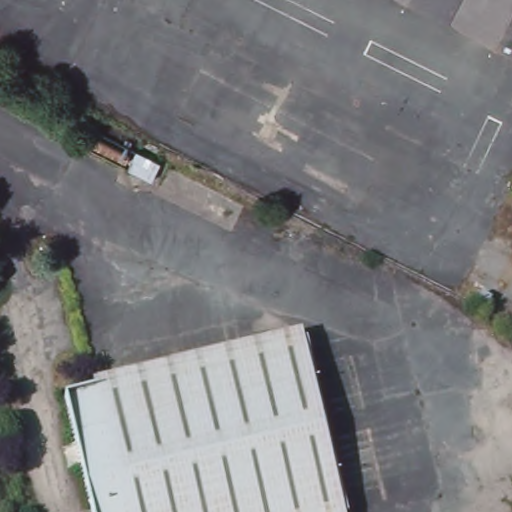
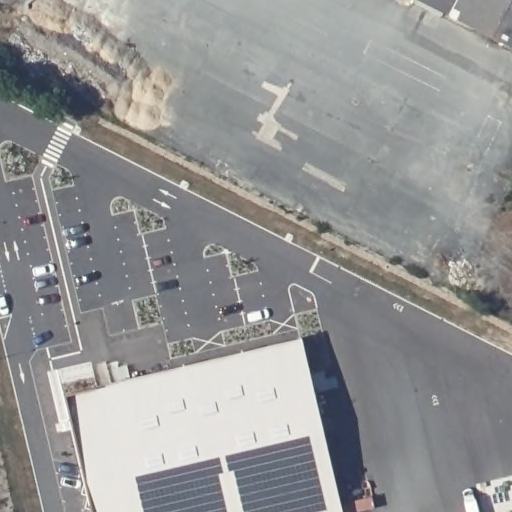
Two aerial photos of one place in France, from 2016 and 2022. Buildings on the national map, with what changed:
unchanged [(426,6),(414,0),(430,0),(426,6)]
unchanged [(430,0),(512,0),(512,49),(426,6),(430,0)]
unchanged [(340,507),(320,512),(90,512),(60,386),(299,329),(340,507)]

